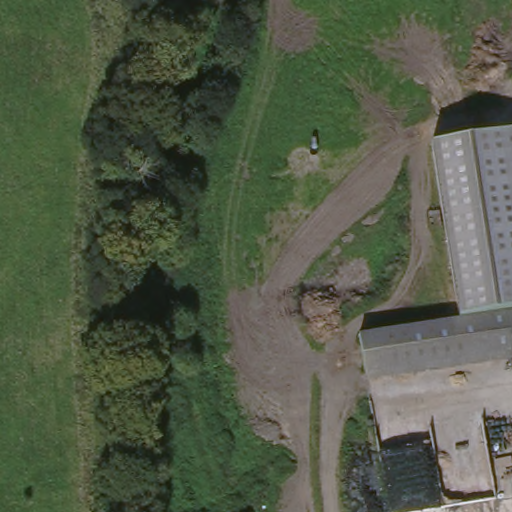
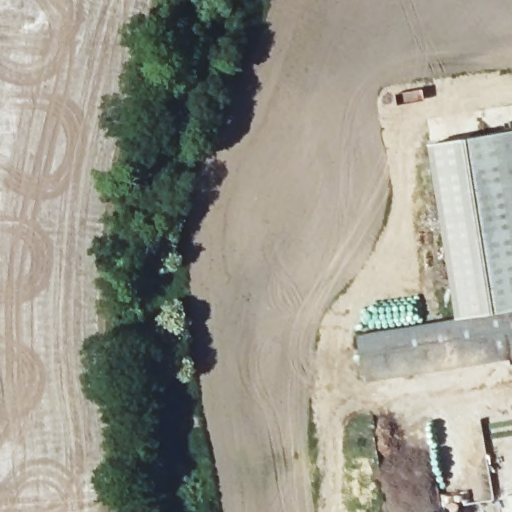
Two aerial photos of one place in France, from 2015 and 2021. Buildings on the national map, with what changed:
unchanged [(512,130),(512,303),(459,311),(433,141),(512,130)]
unchanged [(359,334),(512,311),(512,361),(366,381),(359,334)]

